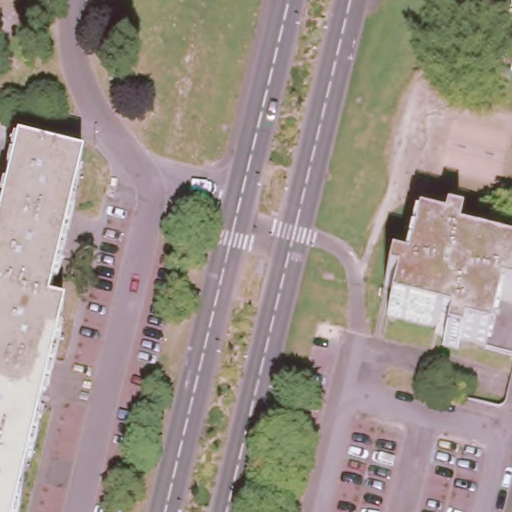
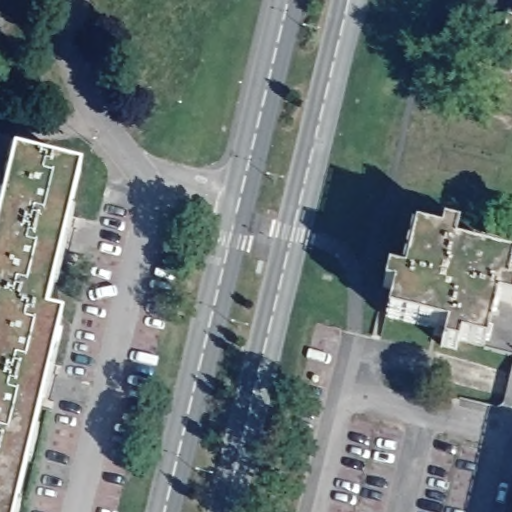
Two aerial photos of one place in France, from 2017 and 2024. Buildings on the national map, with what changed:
unchanged [(496,63),(512,0),(512,67),(496,63)]
unchanged [(80,171),(46,315),(62,320),(15,512),(0,512),(0,221),(16,155),(80,171)]
unchanged [(382,286),(387,271),(402,275),(414,227),(439,234),(442,224),(457,227),(454,244),(512,258),(506,284),(512,286),(512,303),(496,299),(485,344),(459,338),(456,348),(442,345),(445,328),(386,313),(392,288),(382,286)]

